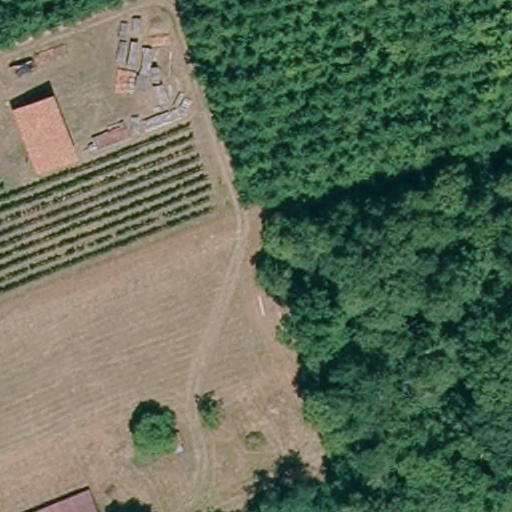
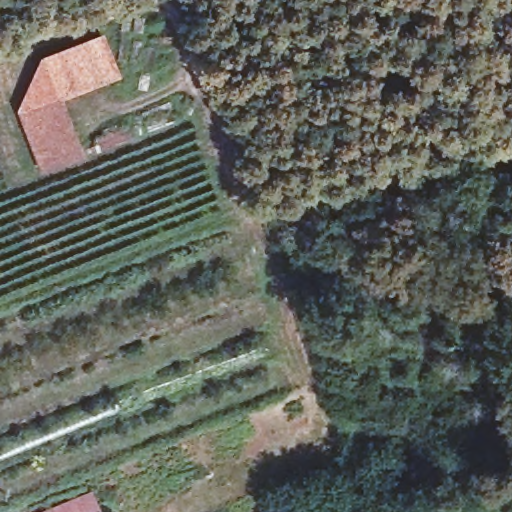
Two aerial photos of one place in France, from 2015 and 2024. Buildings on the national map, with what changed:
new [(100,33),(119,76),(58,99),(55,91),(13,107),(37,57),(100,33)]
unchanged [(13,107),(55,91),(78,157),(37,172),(13,107)]
unchanged [(103,512),(39,512),(94,490),(103,512)]

